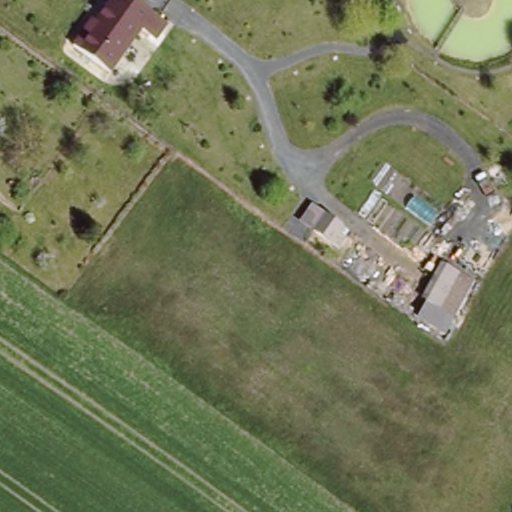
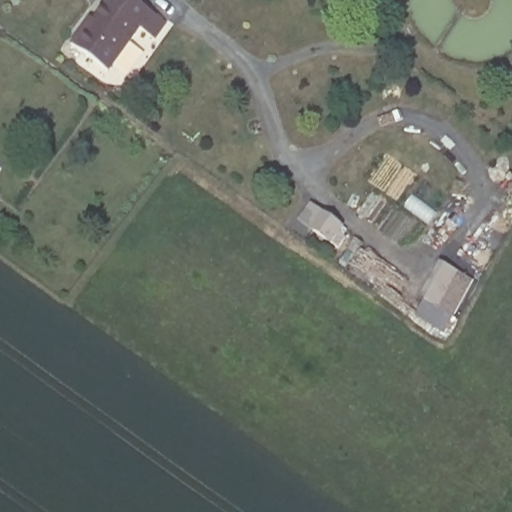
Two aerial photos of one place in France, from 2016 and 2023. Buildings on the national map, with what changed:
unchanged [(173,27),(162,42),(148,31),(115,76),(74,46),(87,29),(93,21),(102,27),(121,0),(136,0),(173,27)]
unchanged [(333,246),(313,232),(303,225),(313,211),(323,218),(343,232),(333,246)]
unchanged [(467,284),(445,317),(435,310),(457,278),(467,284)]

